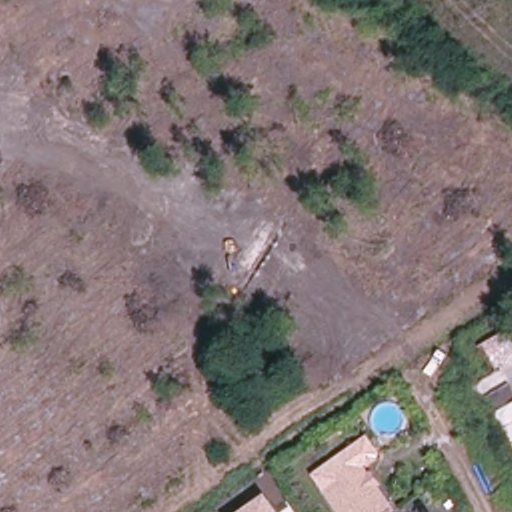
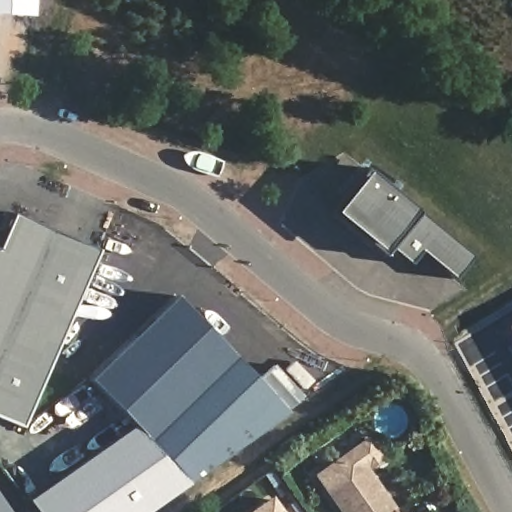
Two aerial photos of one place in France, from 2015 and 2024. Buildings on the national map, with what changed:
new [(31,11),(0,10),(0,0),(32,0),(31,11)]
new [(453,278),(419,251),(409,264),(389,246),(381,255),(376,251),(330,212),(360,176),(354,171),(364,161),(394,187),(390,192),(411,209),(417,214),(470,256),(453,278)]
new [(12,214),(97,250),(20,428),(0,419),(0,240),(12,214)]
new [(286,412),(187,483),(146,440),(131,425),(88,379),(175,296),(234,357),(286,412)]
new [(187,483),(146,512),(36,512),(27,500),(131,425),(146,440),(187,483)]
unchanged [(393,512),(342,512),(325,487),(359,463),(393,512)]
unchanged [(273,512),(248,512),(265,500),(273,512)]
new [(0,512),(0,502),(7,512),(0,512)]

